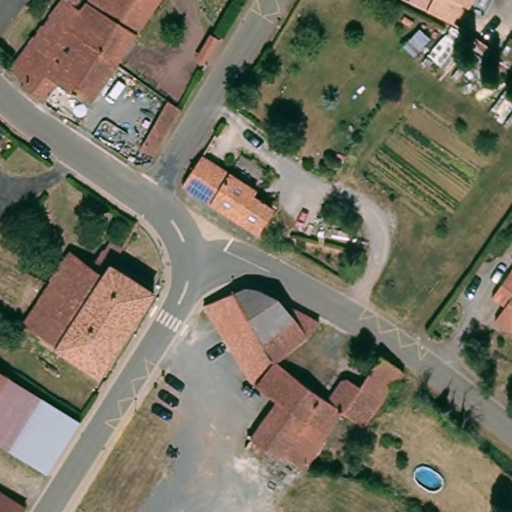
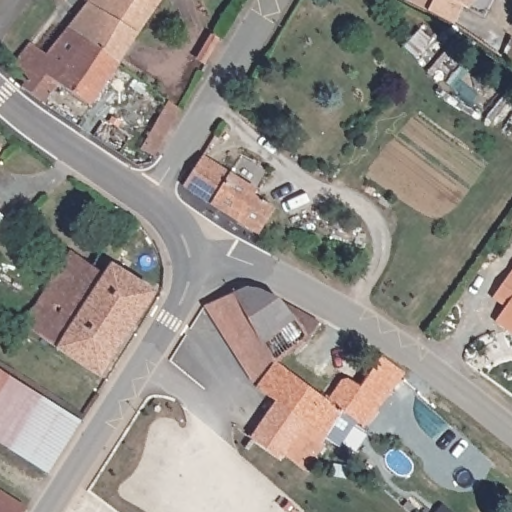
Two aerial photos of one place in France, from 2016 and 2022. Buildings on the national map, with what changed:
unchanged [(58,81),(46,98),(23,83),(26,78),(11,64),(30,38),(50,13),(59,0),(71,0),(58,18),(69,25),(85,3),(88,0),(160,0),(141,27),(119,62),(91,104),(58,81)]
unchanged [(492,56),(505,35),(512,40),(512,70),(492,56)]
unchanged [(174,120),(149,161),(137,154),(166,105),(177,114),(174,120)]
unchanged [(202,156),(274,209),(257,233),(185,185),(202,156)]
unchanged [(106,267),(55,349),(39,339),(36,337),(20,325),(67,253),(89,266),(100,250),(101,251),(109,241),(119,248),(106,267)]
unchanged [(151,298),(99,378),(55,349),(106,267),(151,298)]
unchanged [(490,321),(497,311),(500,307),(487,297),(505,270),(512,275),(512,336),(490,321)]
unchanged [(316,399),(298,425),(284,414),(272,405),(264,399),(256,394),(256,393),(275,367),(273,365),(272,364),(234,300),(232,297),(248,291),(260,293),(279,304),(281,305),(317,326),(309,337),(305,340),(280,359),(285,366),(281,370),(315,397),(317,398),(316,399)]
unchanged [(234,300),(272,364),(250,385),(200,311),(202,309),(232,297),(234,300)]
unchanged [(361,433),(352,427),(331,460),(317,451),(301,474),(300,474),(290,467),(286,464),(277,458),(298,425),(316,399),(317,398),(323,403),(341,381),(357,391),(380,360),(400,374),(397,378),(361,433)]
unchanged [(0,372),(20,384),(79,420),(45,472),(0,444),(0,372)]
unchanged [(275,462),(247,443),(272,405),(284,414),(298,425),(277,458),(275,462)]
unchanged [(0,512),(0,493),(23,507),(20,512),(0,512)]

